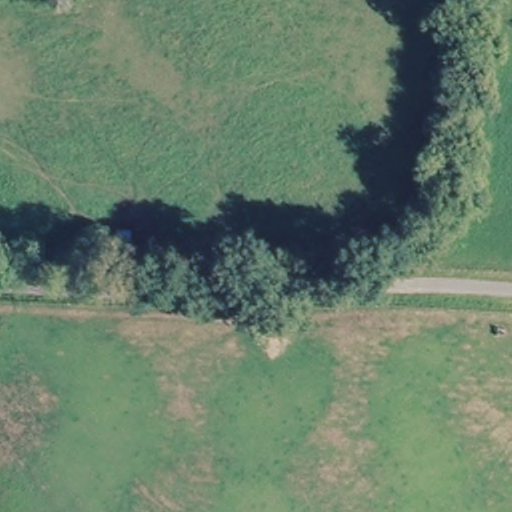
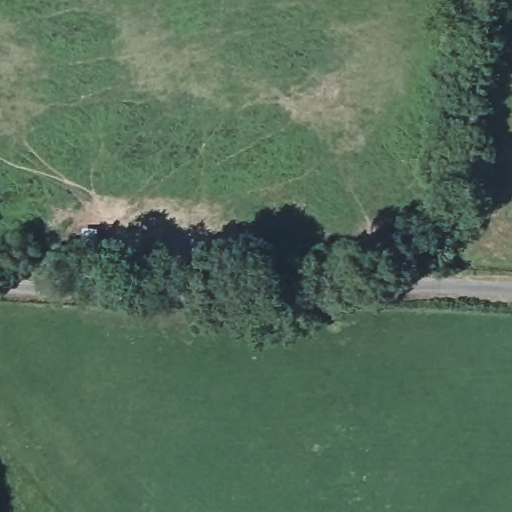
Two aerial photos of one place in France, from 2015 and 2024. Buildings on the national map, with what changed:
[]

